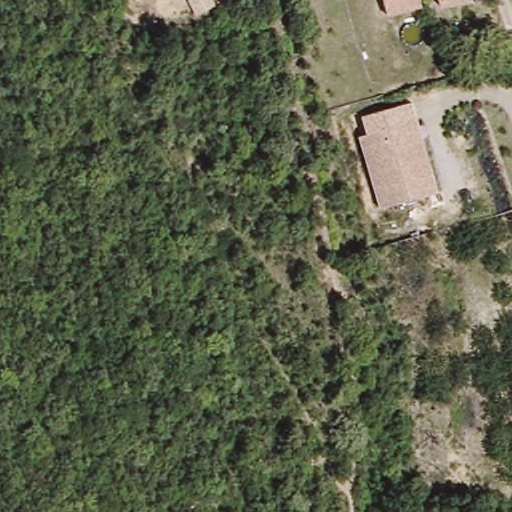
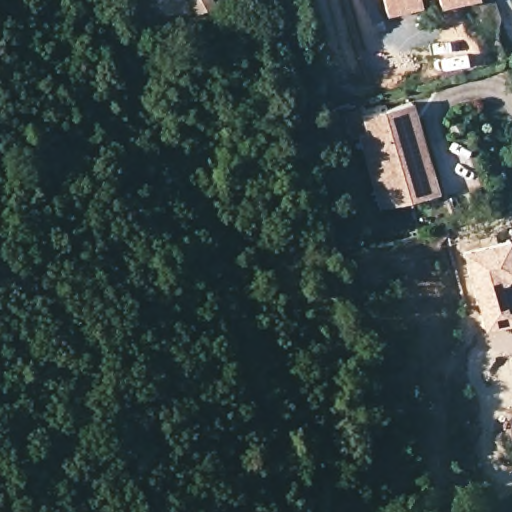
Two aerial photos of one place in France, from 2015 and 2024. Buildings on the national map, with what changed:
unchanged [(379,0),(398,0),(381,4),(379,0)]
unchanged [(438,8),(435,0),(464,0),(438,8)]
unchanged [(425,133),(414,136),(428,191),(383,204),(367,146),(377,143),(373,127),(420,114),(425,133)]
new [(512,247),(512,279),(506,281),(512,301),(512,321),(482,329),(461,251),(510,237),(512,247)]

